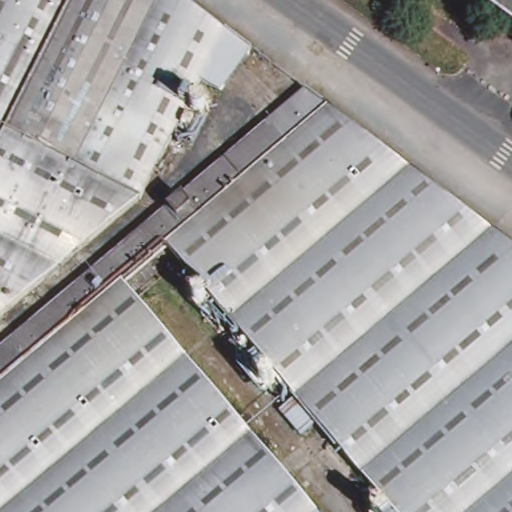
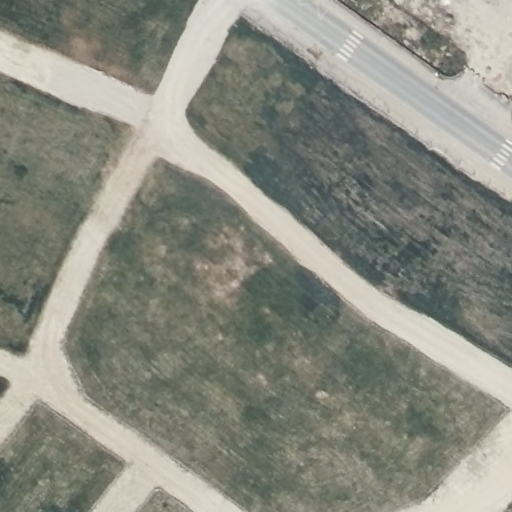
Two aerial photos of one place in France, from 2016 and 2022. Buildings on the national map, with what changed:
demolished [(221,43),(137,212),(0,329),(0,0),(163,0),(221,43)]
demolished [(512,25),(476,0),(512,0),(512,25)]
demolished [(295,398),(165,246),(144,265),(159,283),(137,302),(317,512),(0,512),(0,351),(304,91),(512,245),(512,512),(391,512),(315,423),(295,398)]

